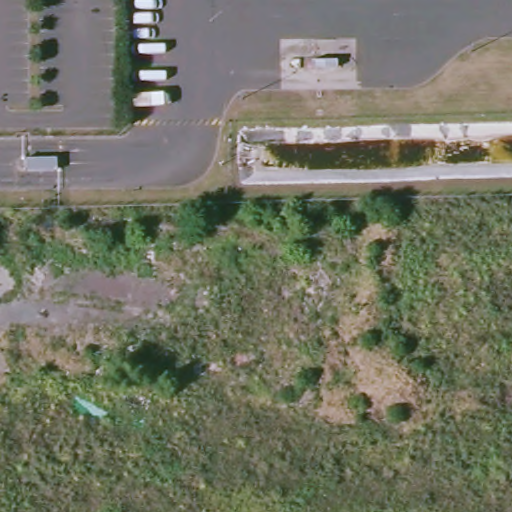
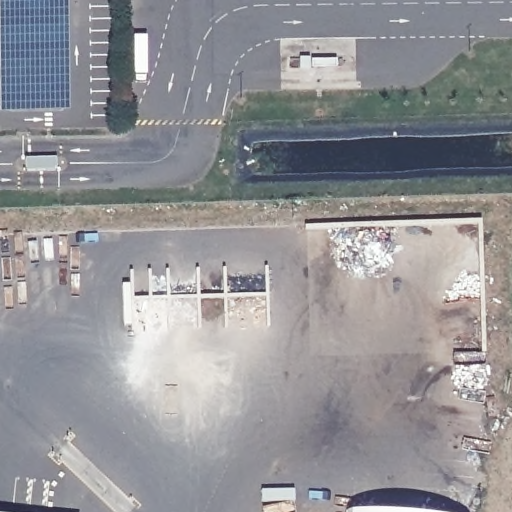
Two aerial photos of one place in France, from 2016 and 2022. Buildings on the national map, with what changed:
new [(71,112),(1,113),(0,43),(0,0),(69,0),(71,112)]
unchanged [(25,162),(56,161),(57,174),(25,174),(25,162)]

